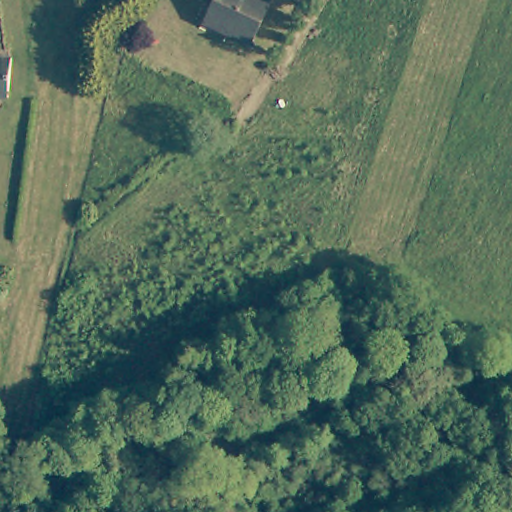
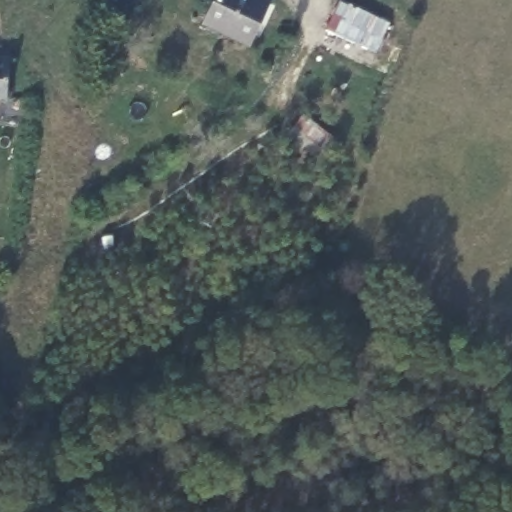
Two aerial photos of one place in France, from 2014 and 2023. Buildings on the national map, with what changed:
unchanged [(228,36),(229,31),(207,22),(217,0),(267,0),(250,45),(228,36)]
new [(341,0),(392,23),(379,53),(325,28),(339,0),(341,0)]
unchanged [(8,96),(0,96),(0,55),(10,55),(8,96)]

